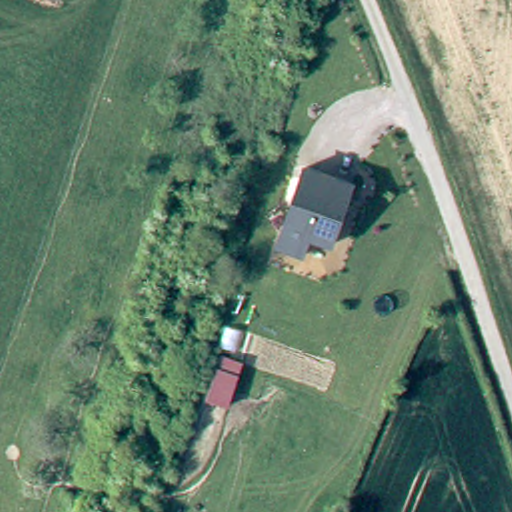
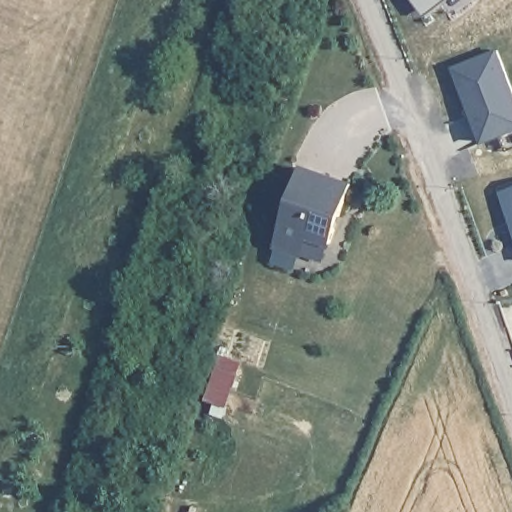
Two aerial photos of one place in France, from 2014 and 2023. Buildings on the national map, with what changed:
new [(413,0),(445,0),(425,15),(413,0)]
new [(450,67),(494,49),(512,95),(512,128),(495,134),(480,140),(468,112),(461,95),(450,67)]
new [(512,128),(512,147),(501,151),(495,134),(512,128)]
unchanged [(275,248),(304,164),(355,182),(333,247),(310,239),(303,258),(275,248)]
new [(512,187),(512,221),(501,191),(512,187)]
unchanged [(221,355),(243,363),(240,375),(228,409),(206,401),(217,367),(221,355)]

